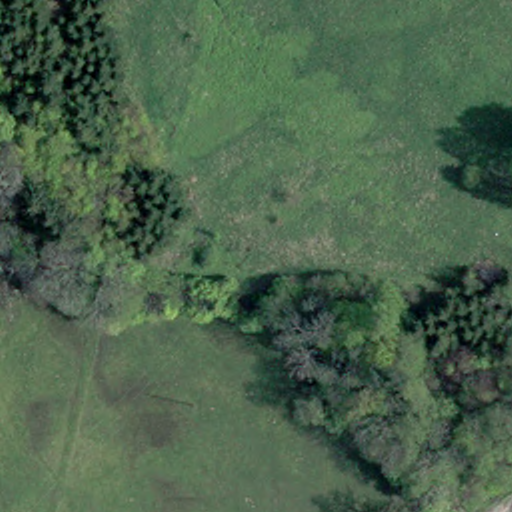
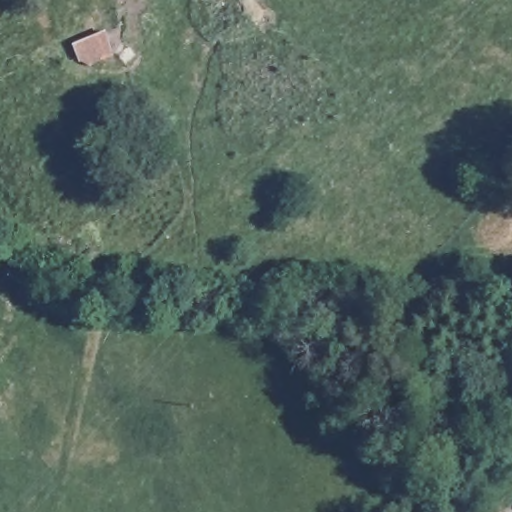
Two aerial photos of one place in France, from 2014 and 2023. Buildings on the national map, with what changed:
new [(104,32),(113,51),(83,65),(74,46),(104,32)]

